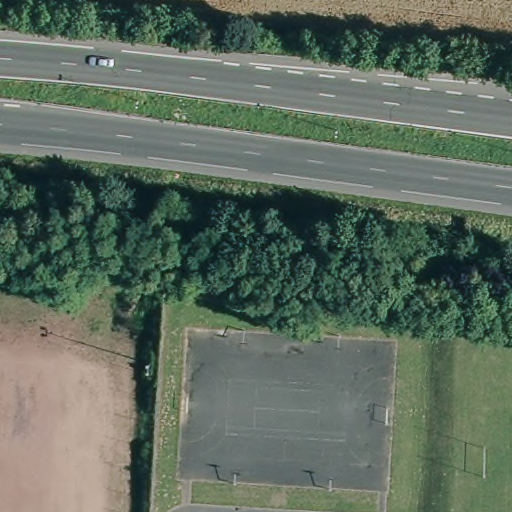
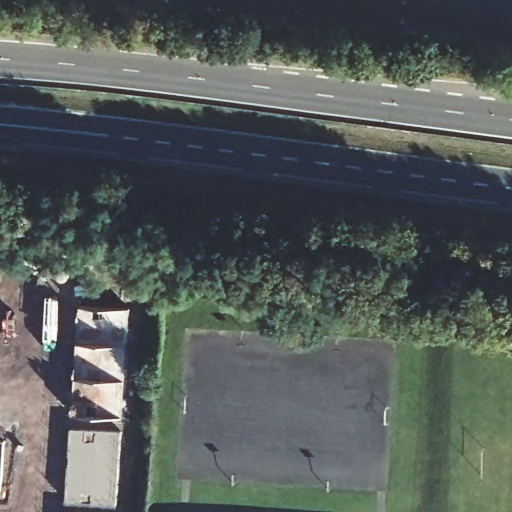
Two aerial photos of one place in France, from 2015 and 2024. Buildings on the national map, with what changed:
new [(79,306),(130,308),(123,418),(72,414),(79,306)]
new [(71,427),(121,430),(117,506),(66,502),(71,427)]
new [(0,489),(0,440),(4,440),(1,490),(0,489)]

